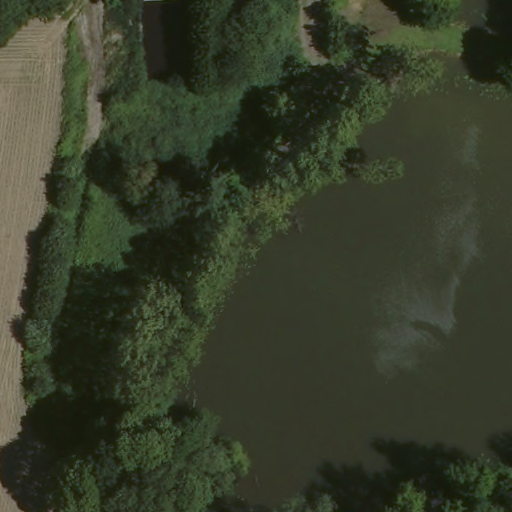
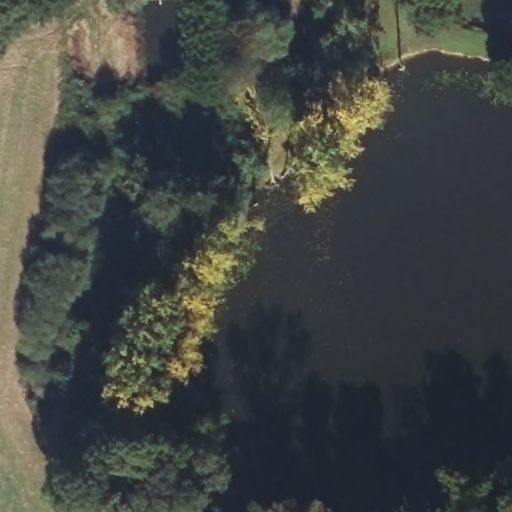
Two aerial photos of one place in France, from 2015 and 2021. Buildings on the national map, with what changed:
unchanged [(126,0),(190,0),(190,4),(126,1),(126,0)]

